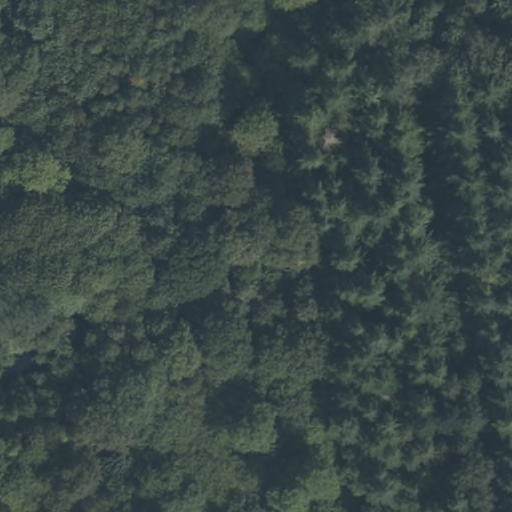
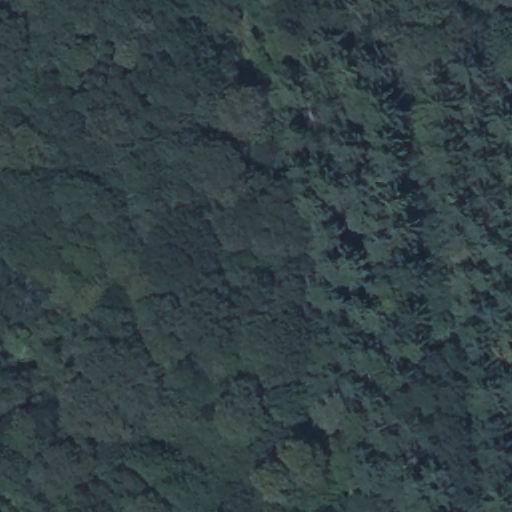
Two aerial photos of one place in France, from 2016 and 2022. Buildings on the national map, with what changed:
[]

